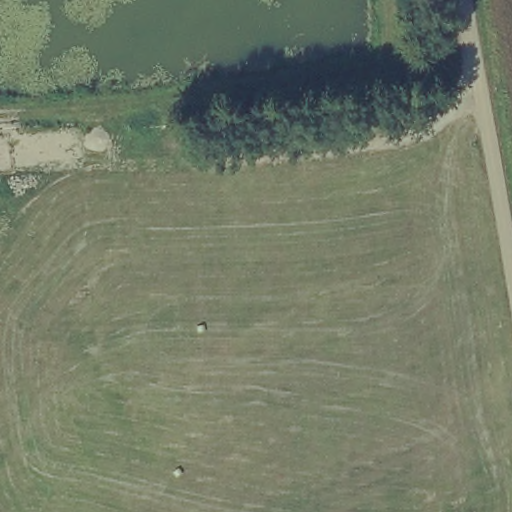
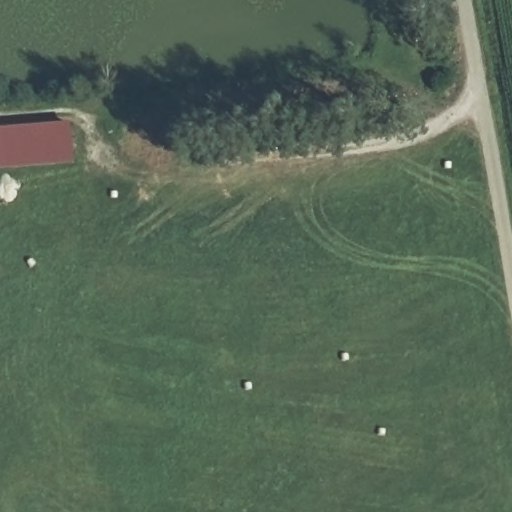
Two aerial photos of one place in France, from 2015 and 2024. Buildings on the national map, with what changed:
new [(75,162),(0,167),(0,128),(73,123),(75,162)]
demolished [(18,178),(0,180),(0,133),(14,132),(18,178)]

